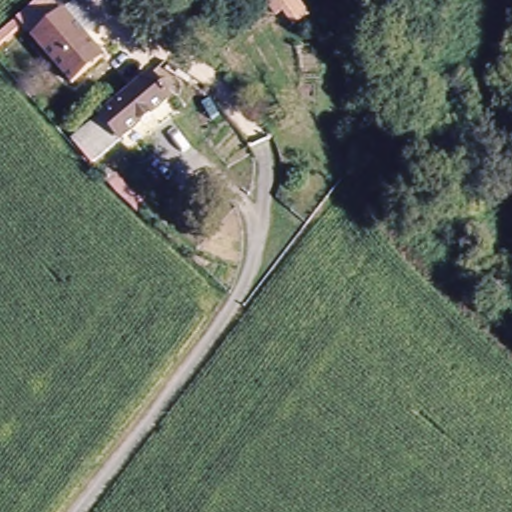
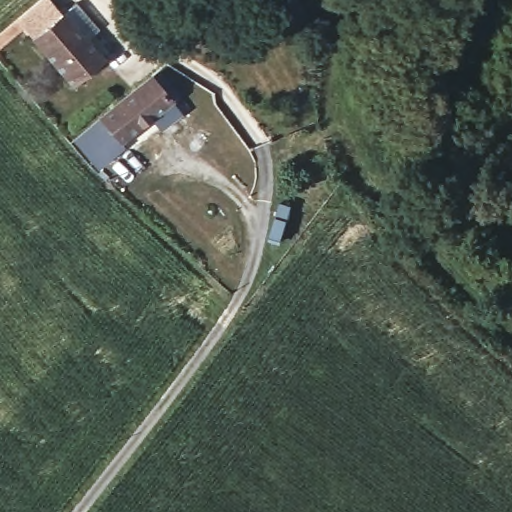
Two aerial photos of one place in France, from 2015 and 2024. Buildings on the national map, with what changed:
unchanged [(67,13),(101,62),(71,86),(19,15),(34,0),(51,0),(61,18),(67,13)]
unchanged [(90,166),(61,141),(166,60),(189,93),(90,166)]

